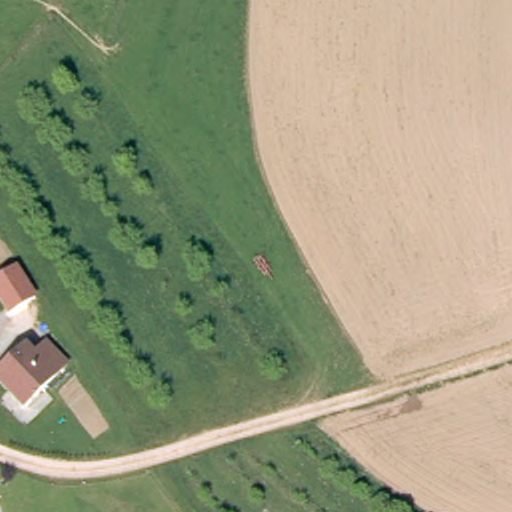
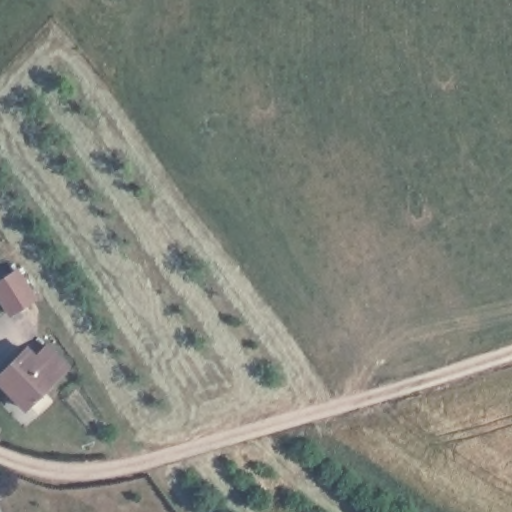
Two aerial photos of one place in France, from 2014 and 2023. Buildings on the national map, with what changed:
unchanged [(8,316),(0,302),(0,277),(18,266),(38,298),(8,316)]
unchanged [(47,347),(68,368),(57,379),(26,409),(0,382),(0,375),(27,349),(36,358),(47,347)]

